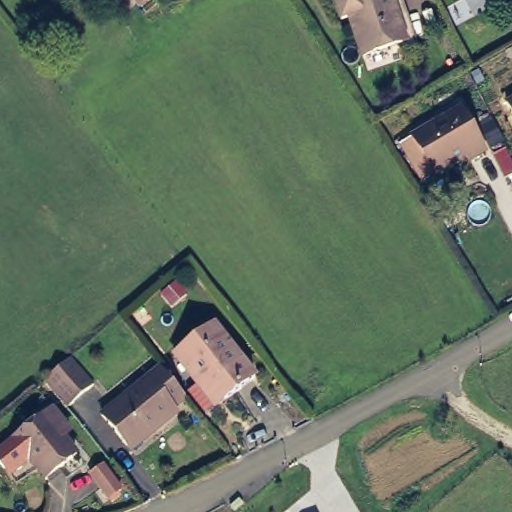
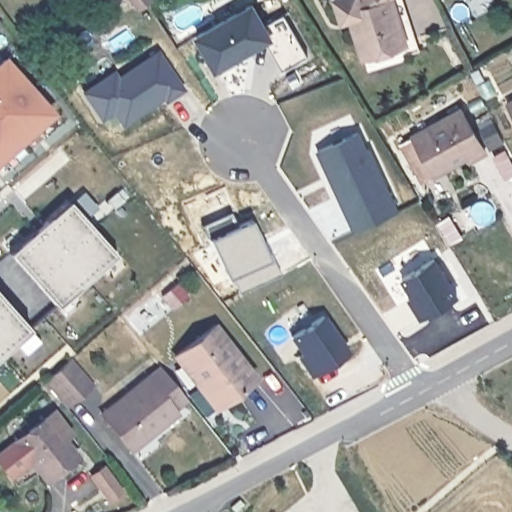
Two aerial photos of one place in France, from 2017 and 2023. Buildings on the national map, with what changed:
unchanged [(138,7),(136,4),(132,0),(147,0),(138,7)]
unchanged [(395,40),(352,53),(339,12),(329,14),(325,0),(382,0),(395,40)]
unchanged [(407,45),(354,62),(352,53),(395,40),(382,0),(394,0),(407,45)]
new [(256,5),(268,30),(295,17),(316,60),(287,74),(271,40),(216,67),(199,33),(256,5)]
new [(115,69),(119,75),(160,51),(184,93),(164,104),(162,101),(117,128),(109,113),(101,118),(82,86),(115,69)]
new [(0,58),(5,54),(57,112),(0,162),(0,58)]
unchanged [(507,100),(512,98),(512,109),(507,100)]
unchanged [(452,107),(477,150),(460,160),(457,156),(427,174),(404,134),(452,107)]
new [(320,142),(366,125),(372,143),(375,142),(404,202),(356,225),(339,191),(331,168),(320,142)]
new [(11,252),(71,199),(117,253),(57,305),(11,252)]
new [(232,205),(237,220),(253,214),(269,256),(273,255),(281,275),(235,293),(228,276),(224,278),(200,217),(232,205)]
new [(436,261),(459,304),(420,324),(408,301),(413,298),(402,279),(436,261)]
new [(0,292),(32,327),(0,355),(0,292)]
new [(326,318),(351,360),(311,383),(297,359),(302,356),(291,338),(326,318)]
unchanged [(194,387),(184,373),(171,357),(211,326),(221,340),(250,379),(218,402),(209,408),(194,387)]
unchanged [(80,355),(100,382),(72,403),(52,376),(80,355)]
unchanged [(114,435),(97,415),(130,388),(156,367),(172,387),(182,399),(170,409),(174,414),(160,425),(147,437),(127,451),(124,446),(114,435)]
unchanged [(0,446),(10,438),(40,415),(50,408),(67,431),(58,439),(72,457),(41,479),(22,454),(8,465),(0,455),(0,446)]
unchanged [(121,488),(108,496),(91,471),(104,463),(121,488)]
unchanged [(240,496),(245,500),(236,508),(232,503),(240,496)]

